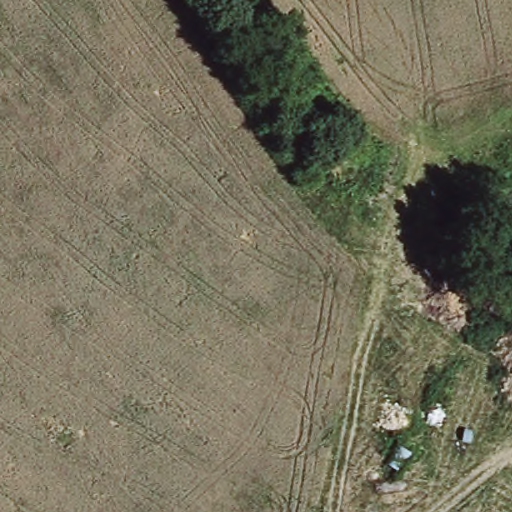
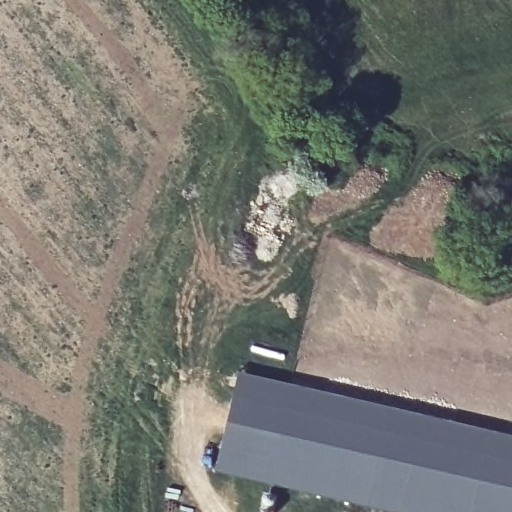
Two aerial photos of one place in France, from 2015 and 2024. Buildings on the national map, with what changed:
new [(512,436),(512,512),(393,512),(213,470),(236,372),(512,436)]

